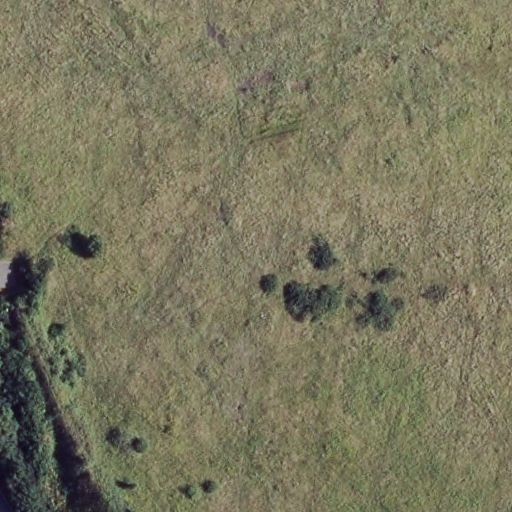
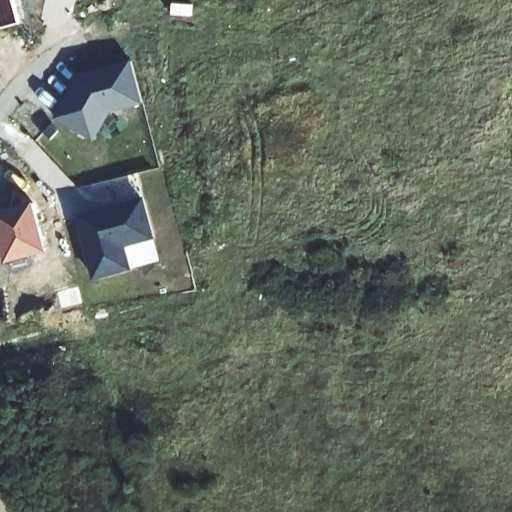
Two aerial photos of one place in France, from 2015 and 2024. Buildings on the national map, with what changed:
new [(0,30),(0,0),(13,0),(20,25),(0,30)]
new [(143,102),(110,114),(93,142),(55,120),(80,75),(130,60),(143,102)]
new [(154,241),(126,250),(133,272),(92,282),(74,217),(143,199),(154,241)]
new [(48,251),(8,261),(0,234),(0,211),(34,202),(48,251)]

